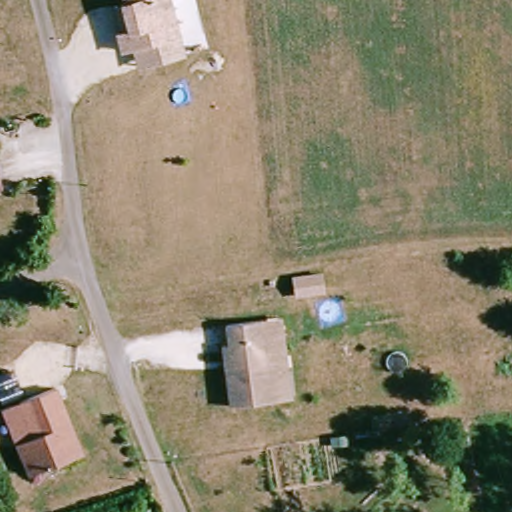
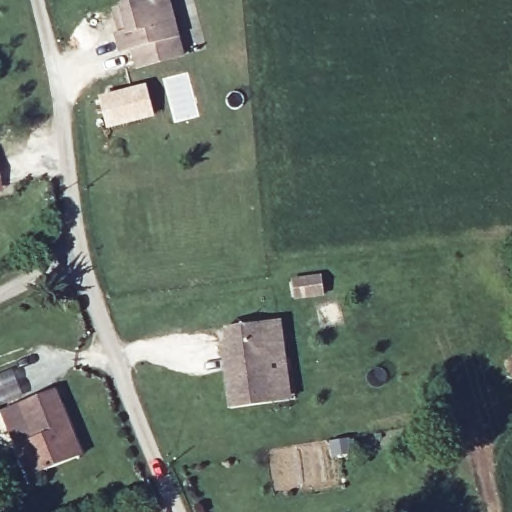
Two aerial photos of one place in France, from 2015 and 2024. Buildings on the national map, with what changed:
unchanged [(136,51),(125,55),(121,38),(123,38),(121,8),(130,7),(128,0),(173,0),(182,41),(187,61),(140,71),(136,51)]
new [(147,84),(156,118),(108,130),(99,96),(147,84)]
unchanged [(1,188),(0,189),(0,182),(1,188)]
new [(321,275),(324,292),(294,297),(293,280),(321,275)]
unchanged [(266,323),(276,404),(233,410),(228,373),(225,348),(231,347),(228,329),(266,323)]
unchanged [(32,473),(19,445),(5,413),(56,391),(79,452),(32,473)]

